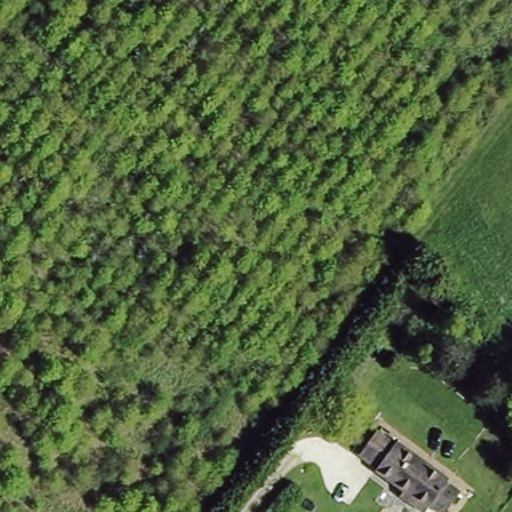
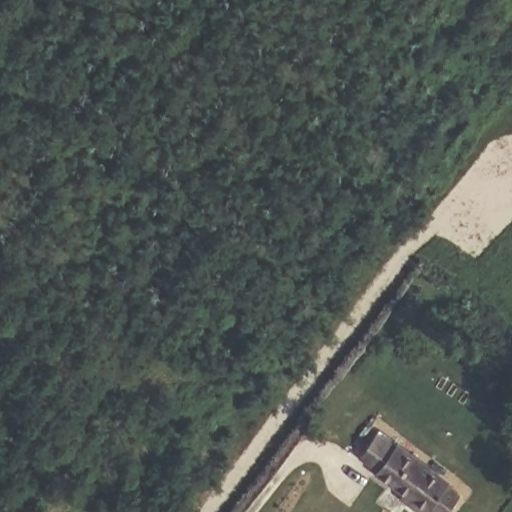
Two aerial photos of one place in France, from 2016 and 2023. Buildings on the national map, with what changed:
unchanged [(432,503),(428,508),(377,469),(381,463),(368,453),(382,430),(400,444),(403,439),(430,462),(450,478),(446,482),(459,492),(445,512),(432,503)]

